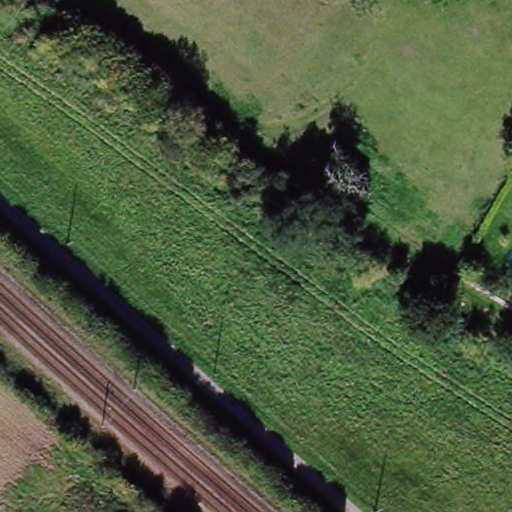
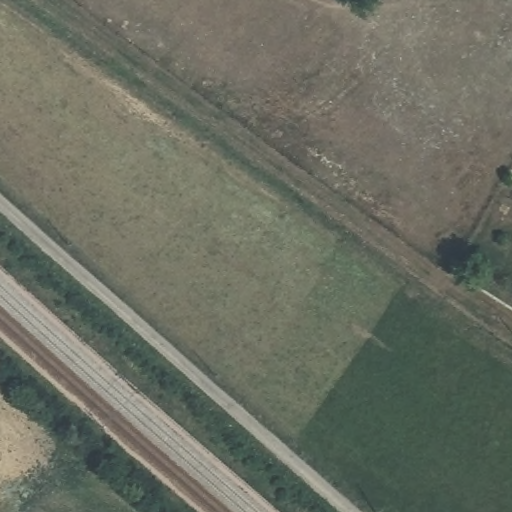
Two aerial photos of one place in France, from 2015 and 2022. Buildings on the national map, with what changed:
unchanged [(512,152),(512,158),(510,157),(512,152)]

